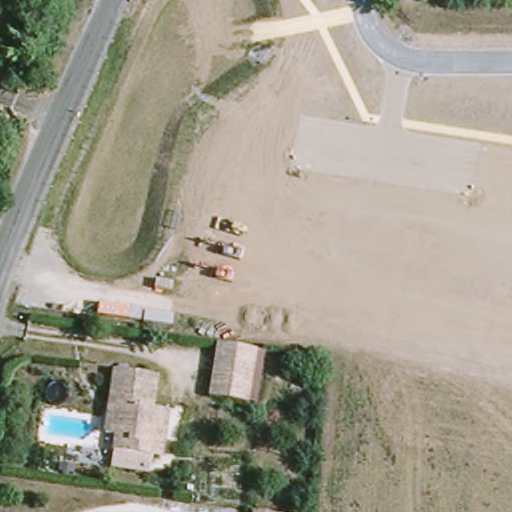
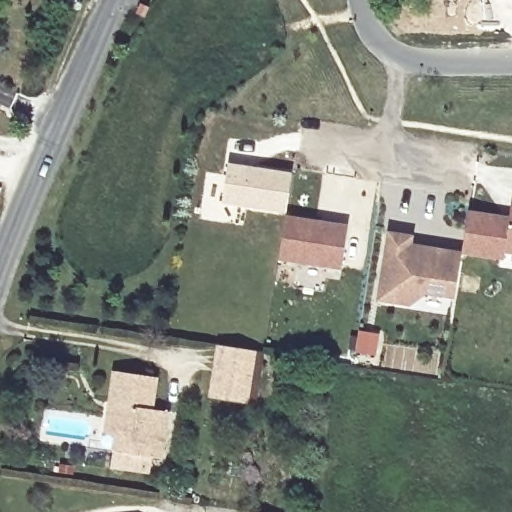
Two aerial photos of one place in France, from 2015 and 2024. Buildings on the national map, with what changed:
new [(468,215),(509,221),(511,209),(512,209),(512,254),(503,253),(502,260),(462,254),(462,250),(468,215)]
new [(342,267),(281,257),(286,216),(347,226),(342,267)]
new [(414,235),(413,244),(462,250),(462,254),(455,298),(425,293),(413,307),(377,302),(387,230),(414,235)]
unchanged [(261,407),(254,406),(217,401),(227,330),(264,335),(272,336),(261,407)]
unchanged [(130,435),(119,434),(122,415),(124,405),(128,372),(170,378),(166,410),(182,411),(175,458),(157,456),(127,451),(130,435)]

